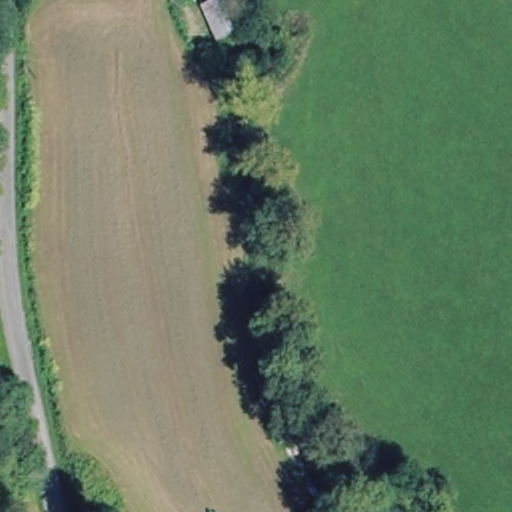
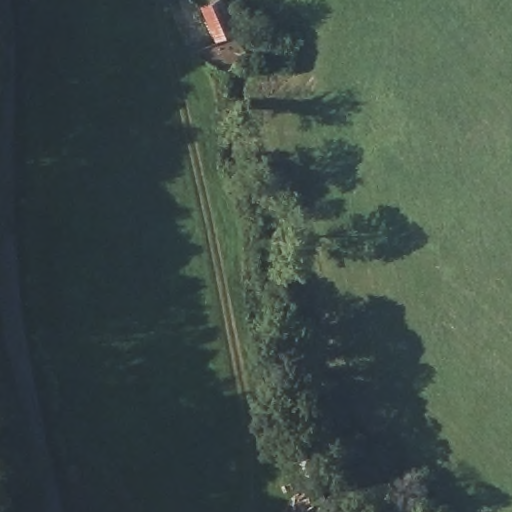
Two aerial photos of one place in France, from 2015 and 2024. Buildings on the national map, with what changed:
unchanged [(226,0),(239,32),(215,44),(199,8),(217,0),(226,0)]

